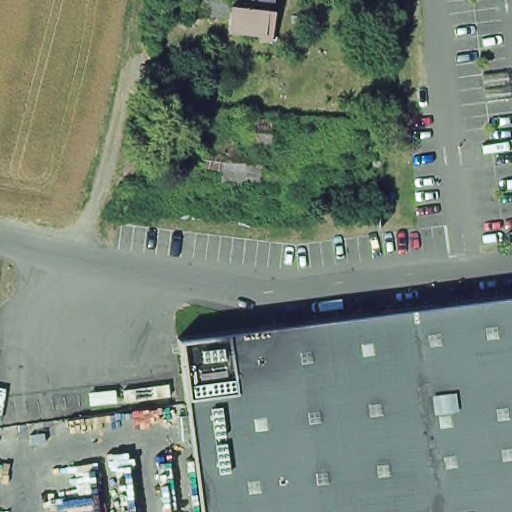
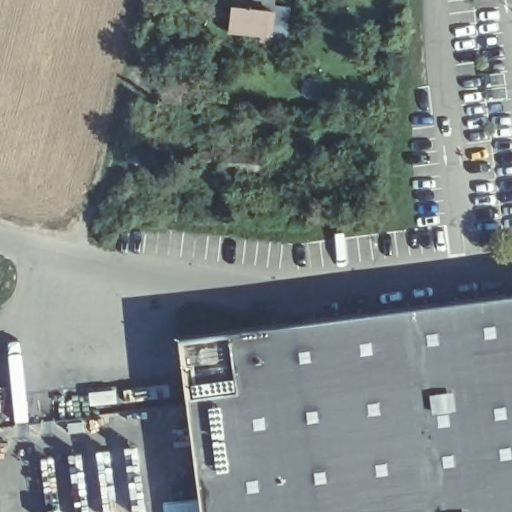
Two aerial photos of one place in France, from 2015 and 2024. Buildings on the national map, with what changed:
unchanged [(259,26),(224,21),(226,0),(248,0),(262,1),(259,26)]
unchanged [(386,0),(404,0),(402,6),(386,3),(386,0)]
unchanged [(245,141),(247,114),(275,118),(272,146),(245,141)]
unchanged [(212,178),(215,150),(262,156),(259,186),(212,178)]
unchanged [(512,295),(512,512),(200,512),(188,352),(187,337),(302,322),(512,295)]

